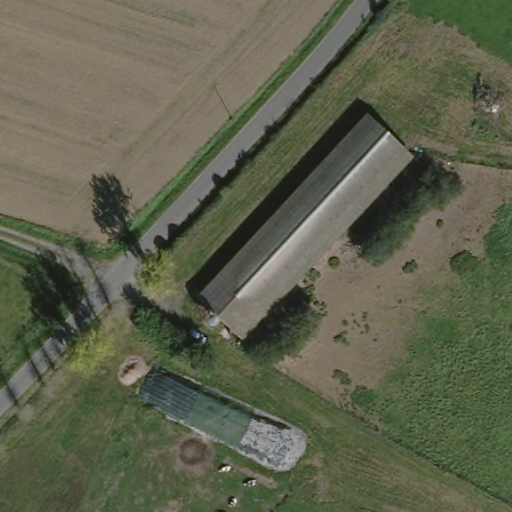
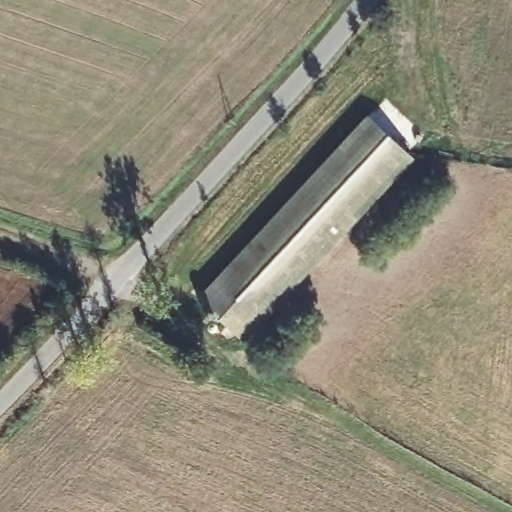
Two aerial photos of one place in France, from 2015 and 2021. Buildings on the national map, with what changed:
unchanged [(236,342),(197,307),(368,123),(407,159),(236,342)]

